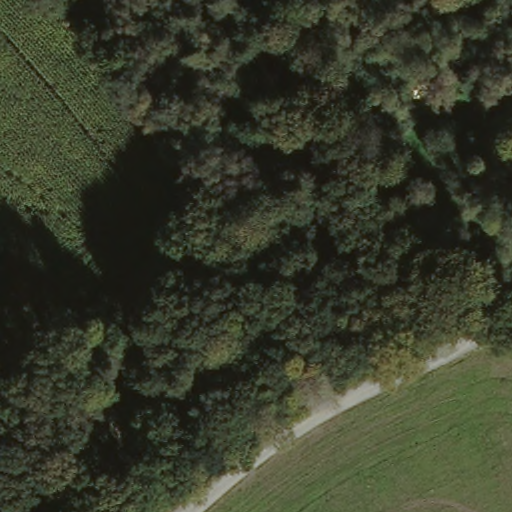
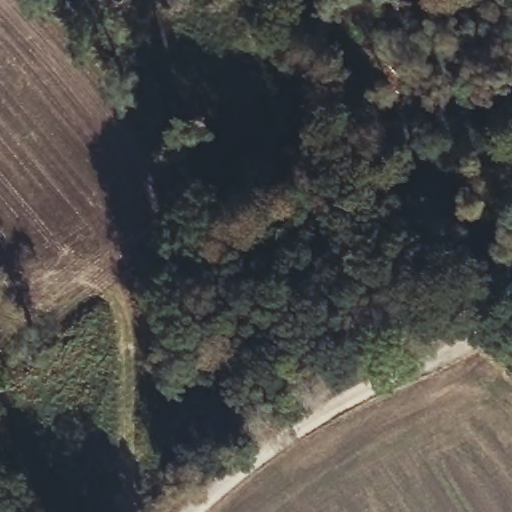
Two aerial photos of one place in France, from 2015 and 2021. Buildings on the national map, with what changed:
unchanged [(465,0),(472,8),(385,95),(351,57),(410,0),(465,0)]
unchanged [(385,95),(391,101),(361,115),(333,76),(351,57),(385,95)]

